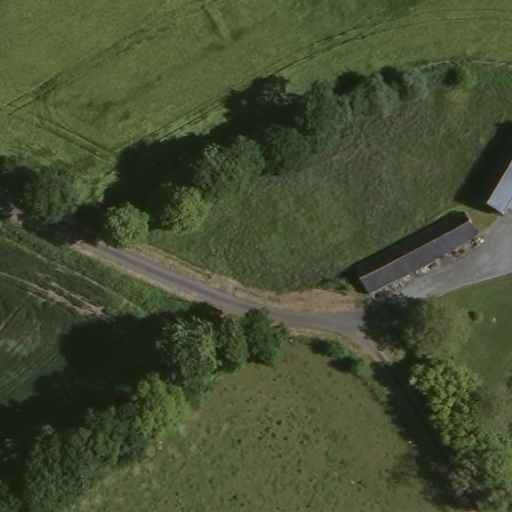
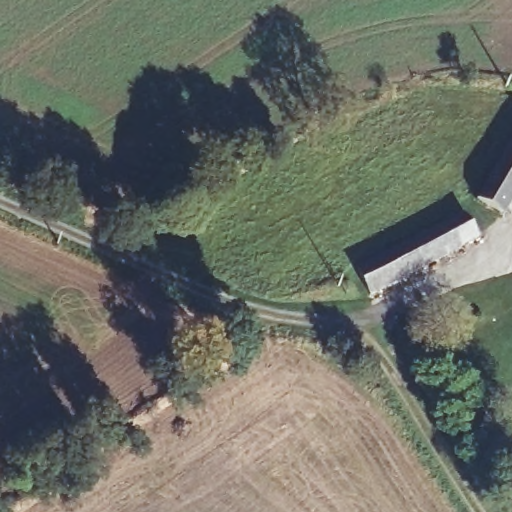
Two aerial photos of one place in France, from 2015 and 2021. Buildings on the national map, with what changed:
unchanged [(502,221),(476,207),(512,139),(512,203),(502,221)]
unchanged [(455,257),(435,267),(422,242),(464,219),(471,231),(478,244),(455,257)]
unchanged [(371,303),(364,292),(357,278),(422,242),(435,267),(384,297),(371,303)]

